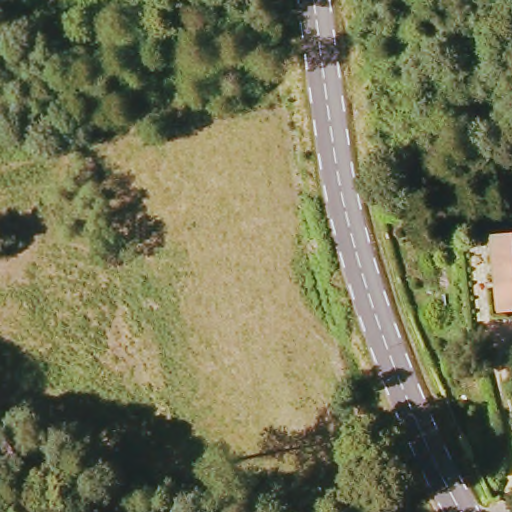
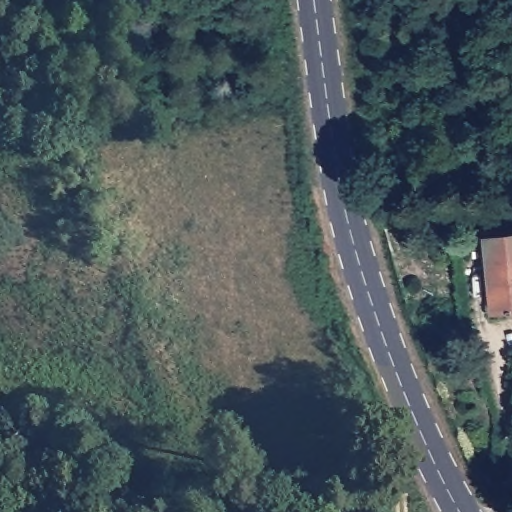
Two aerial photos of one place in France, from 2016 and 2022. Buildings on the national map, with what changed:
unchanged [(500,310),(491,235),(512,233),(512,308),(500,310)]

